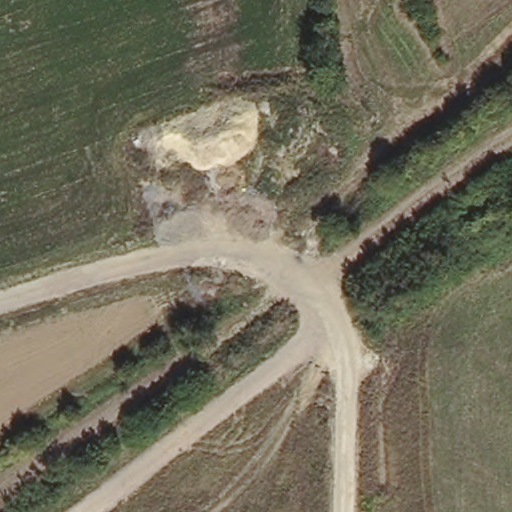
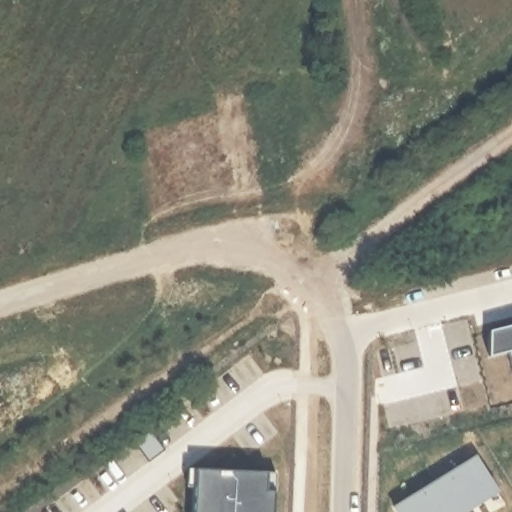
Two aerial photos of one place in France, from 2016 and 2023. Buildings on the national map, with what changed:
new [(490,333),(512,328),(512,361),(509,352),(489,358),(490,333)]
new [(189,453),(273,455),(269,512),(185,512),(189,453)]
new [(473,454),(499,494),(469,512),(452,512),(434,481),(473,454)]
new [(434,481),(452,512),(395,512),(391,505),(434,481)]

